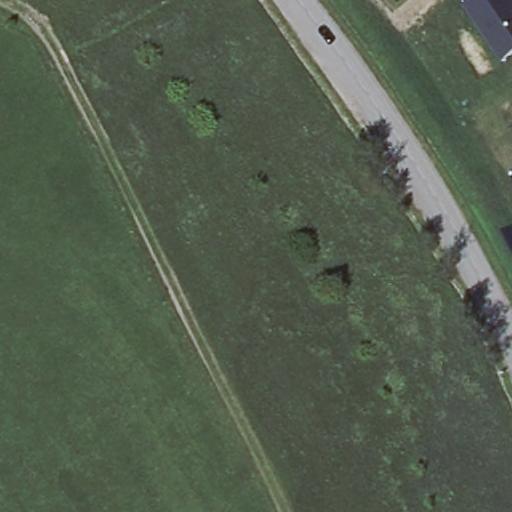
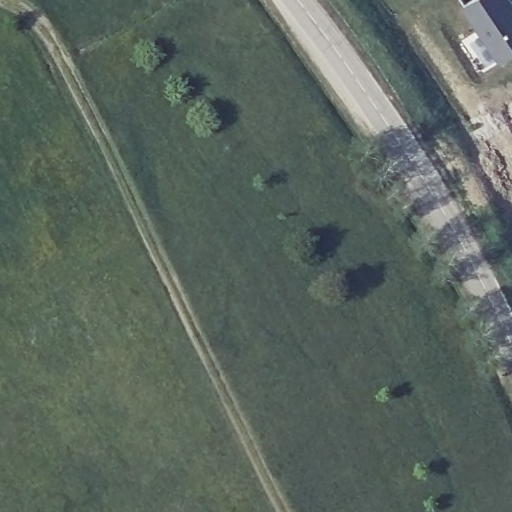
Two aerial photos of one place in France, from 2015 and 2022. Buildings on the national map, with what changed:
unchanged [(465,6),(474,0),(512,0),(512,55),(502,61),(465,6)]

